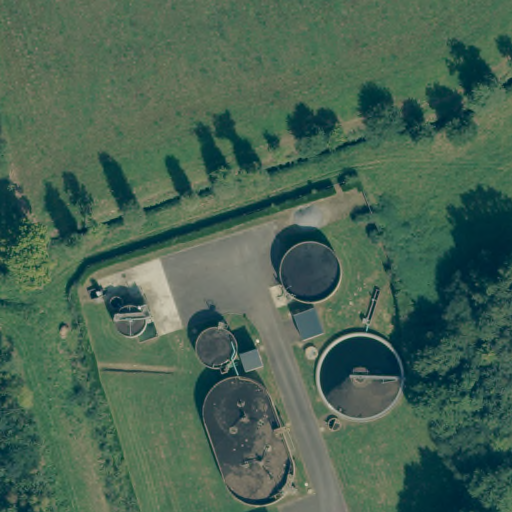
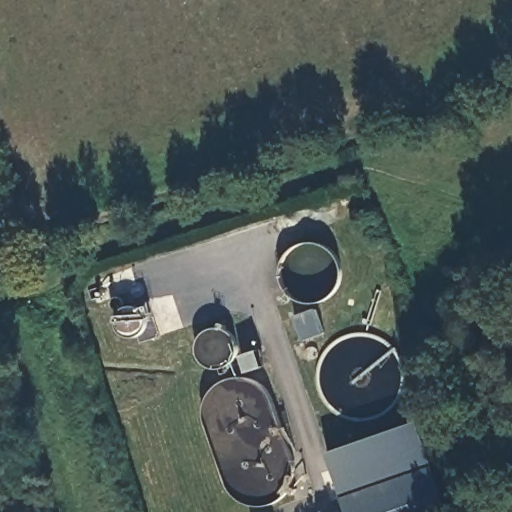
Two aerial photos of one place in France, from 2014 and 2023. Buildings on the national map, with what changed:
unchanged [(310,309),(318,325),(299,332),(291,316),(310,309)]
new [(418,421),(451,512),(347,512),(326,453),(418,421)]

